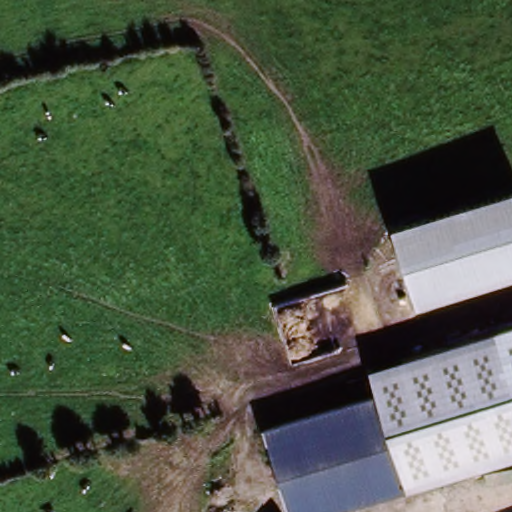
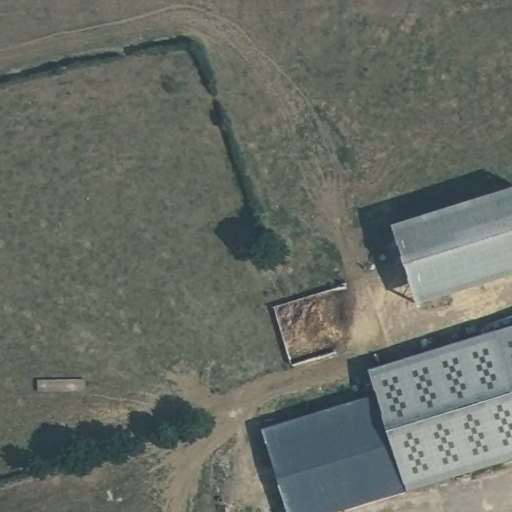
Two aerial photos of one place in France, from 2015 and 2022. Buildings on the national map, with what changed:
unchanged [(391,227),(512,188),(512,279),(418,309),(391,227)]
unchanged [(512,386),(512,455),(403,487),(375,391),(368,372),(495,332),(497,338),(512,333),(512,353),(502,357),(512,386)]
unchanged [(512,353),(512,386),(502,357),(512,353)]
unchanged [(403,487),(319,512),(284,512),(258,426),(375,391),(403,487)]

